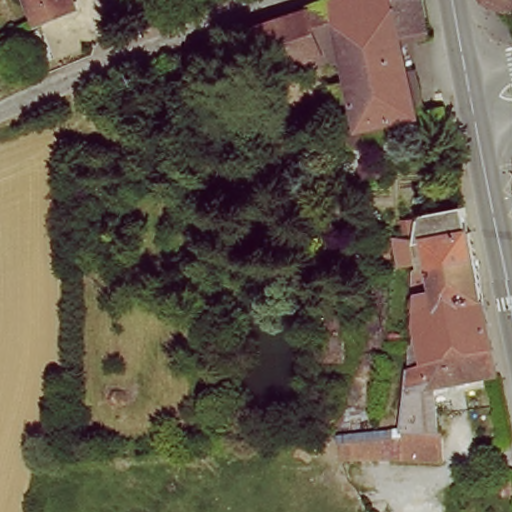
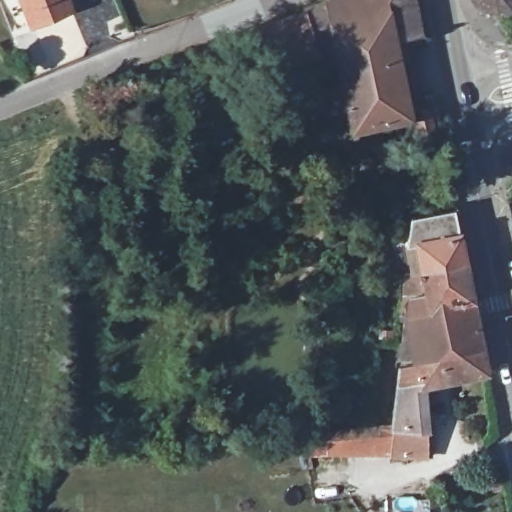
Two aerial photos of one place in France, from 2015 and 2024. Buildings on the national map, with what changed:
unchanged [(70,8),(36,21),(28,0),(67,0),(70,8)]
unchanged [(316,0),(418,0),(423,27),(399,35),(415,115),(377,123),(378,136),(343,145),(337,110),(332,110),(325,86),(349,80),(346,55),(332,57),(328,48),(318,52),(307,4),(316,0)]
unchanged [(327,61),(272,76),(270,63),(267,54),(257,23),(307,4),(318,52),(328,48),(332,57),(327,61)]
unchanged [(267,54),(233,65),(221,37),(257,23),(267,54)]
unchanged [(427,130),(424,122),(420,123),(418,110),(439,105),(443,128),(427,130)]
unchanged [(423,249),(411,249),(419,222),(459,216),(469,265),(427,272),(423,249)]
unchanged [(469,265),(476,302),(413,313),(414,298),(432,295),(427,272),(469,265)]
unchanged [(476,302),(485,349),(419,357),(411,323),(413,313),(476,302)]
unchanged [(397,430),(405,372),(422,367),(419,357),(485,349),(491,376),(428,389),(431,431),(397,430)]
unchanged [(397,430),(393,456),(344,457),(343,432),(397,430)]
unchanged [(431,431),(435,458),(393,456),(397,430),(431,431)]

